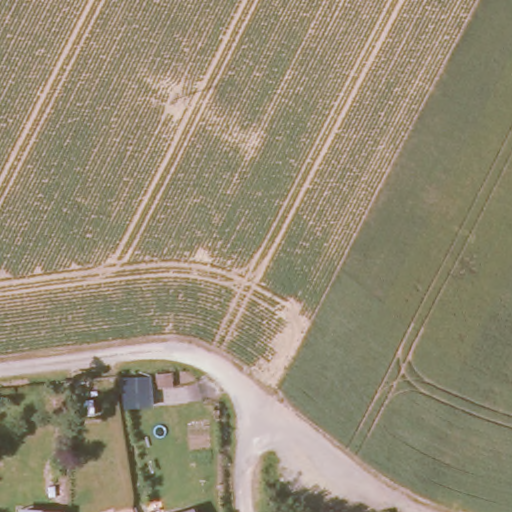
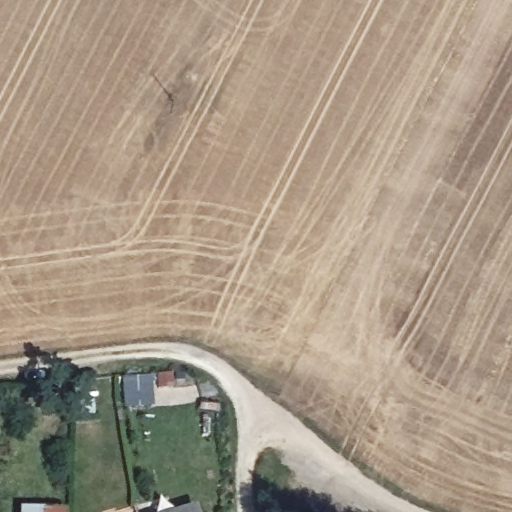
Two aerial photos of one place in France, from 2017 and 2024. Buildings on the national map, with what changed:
unchanged [(194,512),(167,512),(193,505),(194,512)]

